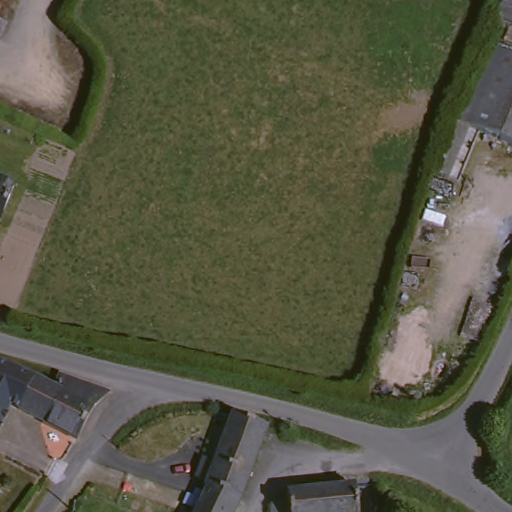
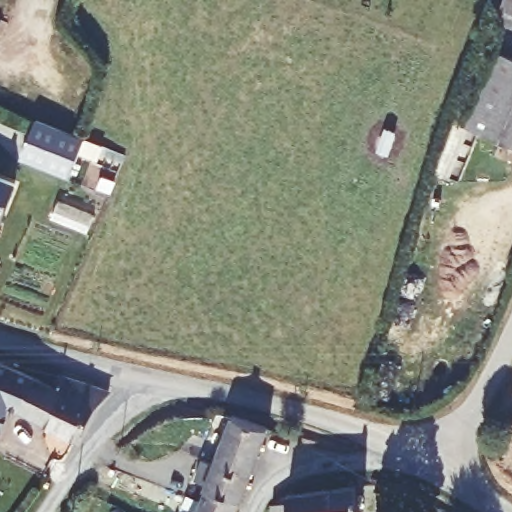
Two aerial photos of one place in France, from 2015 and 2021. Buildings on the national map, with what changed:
unchanged [(0,3),(0,0),(1,0),(0,3)]
unchanged [(508,0),(512,0),(512,25),(500,19),(508,0)]
unchanged [(512,53),(512,142),(463,121),(494,45),(512,53)]
new [(86,138),(104,147),(99,159),(79,151),(68,177),(21,158),(39,118),(86,138)]
unchanged [(19,183),(3,221),(0,220),(0,174),(19,183)]
unchanged [(9,360),(63,386),(67,388),(50,419),(21,404),(19,408),(16,408),(14,411),(11,397),(0,391),(0,359),(1,358),(9,360)]
unchanged [(67,372),(113,387),(92,417),(82,435),(50,419),(67,388),(63,386),(67,372)]
unchanged [(11,397),(14,411),(0,437),(0,391),(11,397)]
unchanged [(207,455),(218,459),(237,412),(272,424),(243,497),(210,486),(208,485),(210,479),(199,475),(207,455)]
unchanged [(289,498),(303,498),(303,490),(369,482),(373,512),(286,512),(286,499),(289,498)]
unchanged [(198,512),(204,499),(210,486),(243,497),(236,512),(198,512)]

